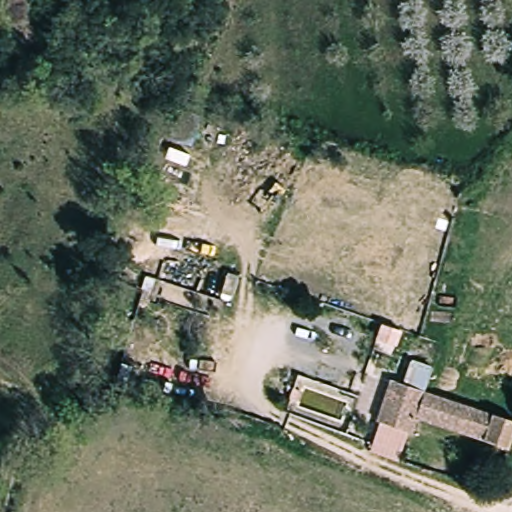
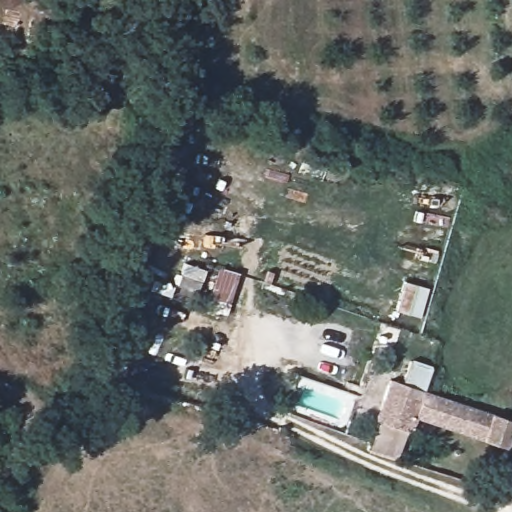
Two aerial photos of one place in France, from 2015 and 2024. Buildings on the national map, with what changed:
unchanged [(377,418),(388,370),(415,376),(412,389),(403,424),(377,418)]
unchanged [(505,447),(403,424),(412,389),(511,422),(505,447)]

